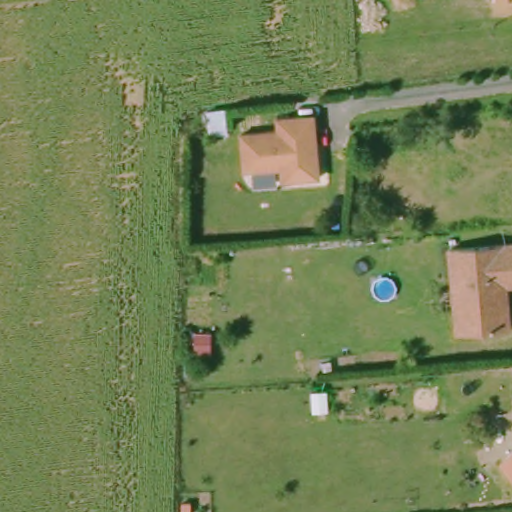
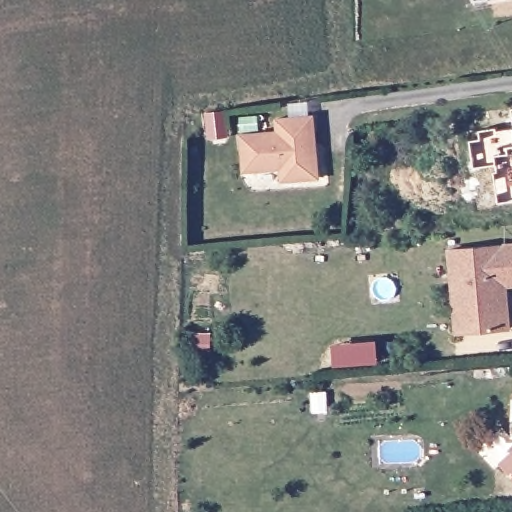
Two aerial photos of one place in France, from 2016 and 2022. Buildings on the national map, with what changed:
unchanged [(285,183),(285,171),(247,174),(244,138),(281,135),(281,121),(311,119),(318,118),(319,148),(323,180),(285,183)]
unchanged [(452,289),(449,249),(512,247),(512,286),(505,286),(510,331),(466,332),(454,333),(452,289)]
unchanged [(504,459),(512,453),(512,468),(504,459)]

